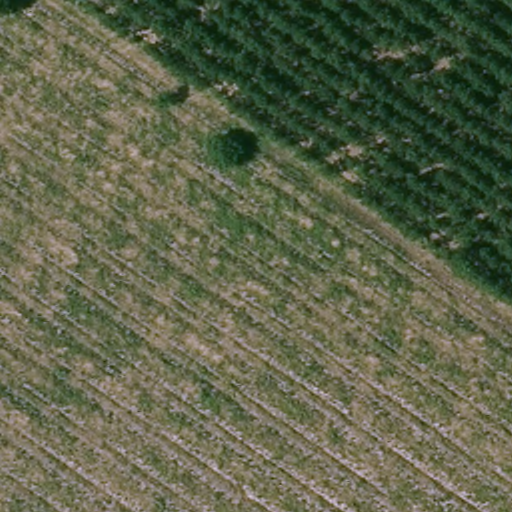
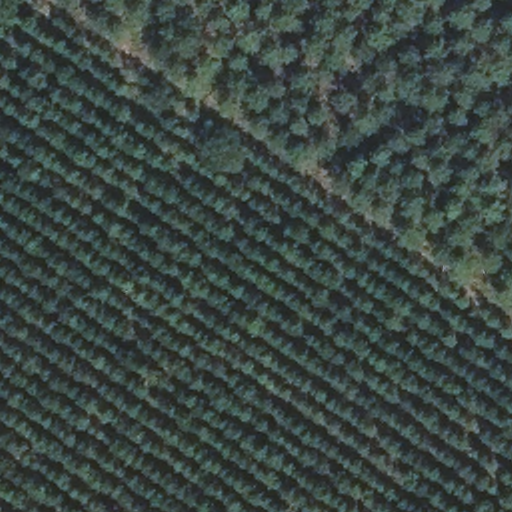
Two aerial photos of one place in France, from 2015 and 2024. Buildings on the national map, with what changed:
[]

